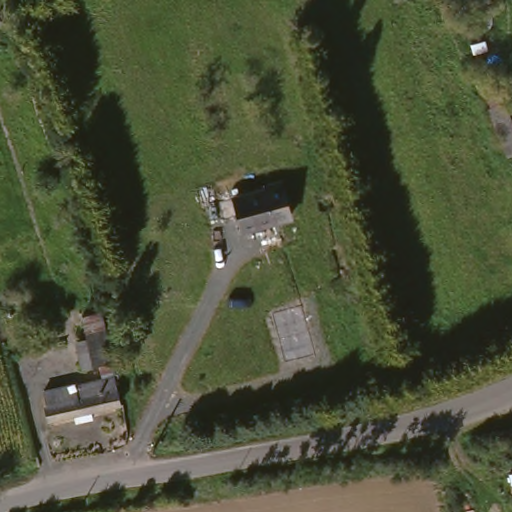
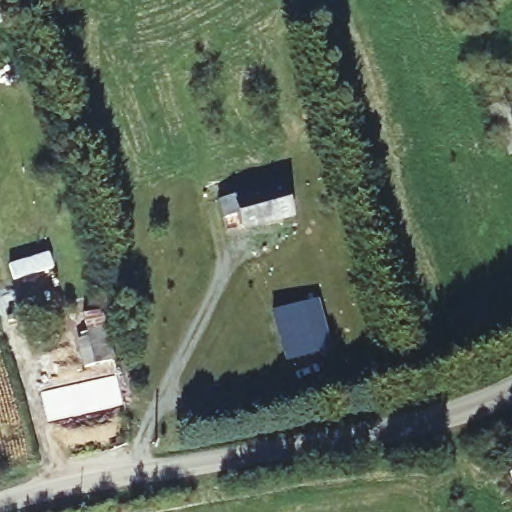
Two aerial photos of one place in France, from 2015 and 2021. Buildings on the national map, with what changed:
unchanged [(494,114),(511,106),(512,108),(512,154),(494,114)]
unchanged [(248,225),(239,193),(289,177),(300,214),(248,225)]
new [(330,352),(284,362),(273,311),(318,300),(330,352)]
unchanged [(54,418),(50,402),(55,401),(51,383),(106,371),(103,355),(96,357),(89,320),(86,312),(105,308),(108,316),(119,368),(126,402),(54,418)]

